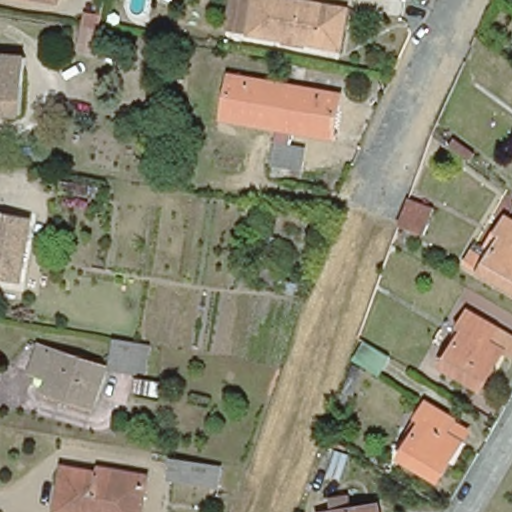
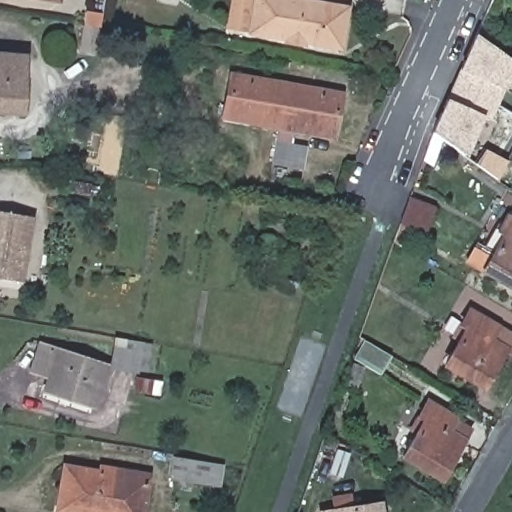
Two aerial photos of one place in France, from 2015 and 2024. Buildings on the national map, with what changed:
unchanged [(248,31),(228,28),(234,0),(253,0),(248,31)]
unchanged [(346,9),(340,48),(303,42),(302,45),(286,42),(286,39),(250,32),(255,0),(293,0),(346,9)]
new [(512,57),(512,71),(490,119),(481,115),(465,153),(430,138),(474,40),(512,57)]
unchanged [(22,112),(0,111),(0,56),(28,58),(22,112)]
unchanged [(272,157),(277,126),(231,116),(237,75),(345,94),(339,136),(312,131),(310,144),(299,142),(296,162),(272,157)]
demolished [(455,139),(476,154),(470,164),(449,149),(455,139)]
unchanged [(435,209),(425,235),(401,226),(410,200),(435,209)]
unchanged [(20,283),(0,279),(0,211),(31,217),(20,283)]
unchanged [(512,220),(512,286),(474,264),(480,254),(484,247),(495,229),(495,228),(500,221),(506,225),(510,219),(512,220)]
unchanged [(512,336),(512,356),(504,352),(483,387),(445,366),(466,330),(461,327),(470,312),(512,336)]
unchanged [(109,367),(114,338),(142,343),(137,373),(109,367)]
unchanged [(384,352),(375,368),(355,356),(362,338),(384,352)]
unchanged [(46,391),(51,377),(33,371),(36,361),(41,346),(51,350),(105,367),(98,390),(93,406),(86,404),(46,391)]
unchanged [(459,420),(452,434),(465,443),(445,479),(410,458),(429,421),(424,418),(433,404),(459,420)]
unchanged [(214,464),(211,484),(185,480),(189,459),(214,464)]
unchanged [(103,466),(147,475),(140,512),(62,512),(56,511),(65,467),(101,473),(103,466)]
unchanged [(388,512),(349,512),(387,506),(388,512)]

